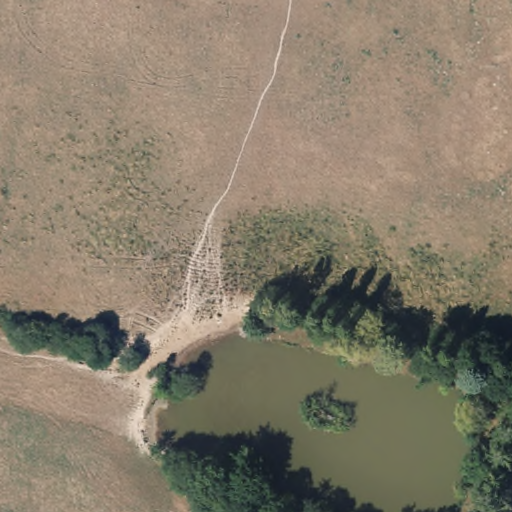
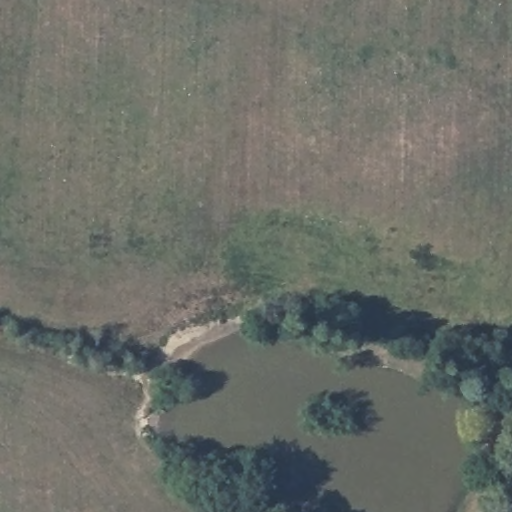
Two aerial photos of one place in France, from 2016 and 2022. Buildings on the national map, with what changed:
[]

